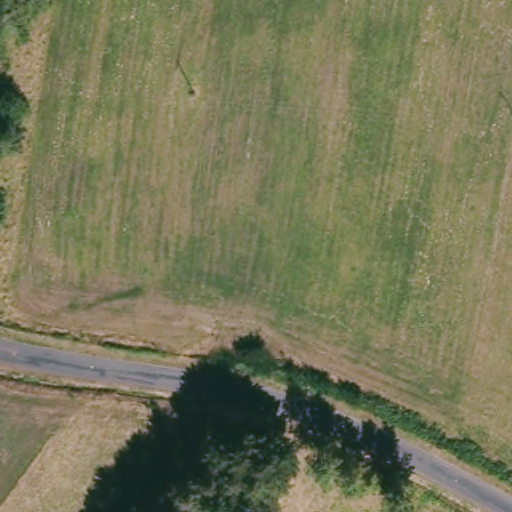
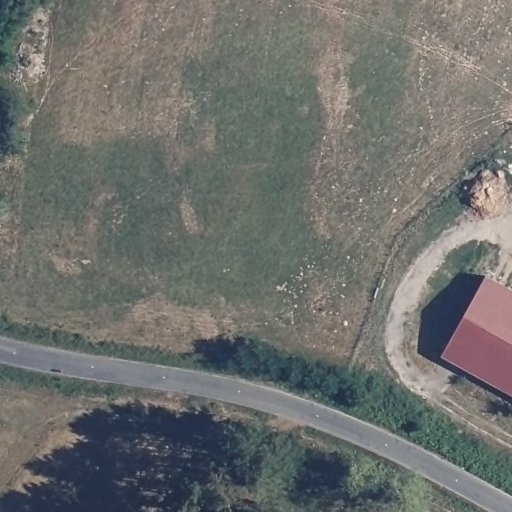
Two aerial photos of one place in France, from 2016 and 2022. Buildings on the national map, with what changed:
new [(442,355),(487,276),(512,290),(512,394),(442,355)]

